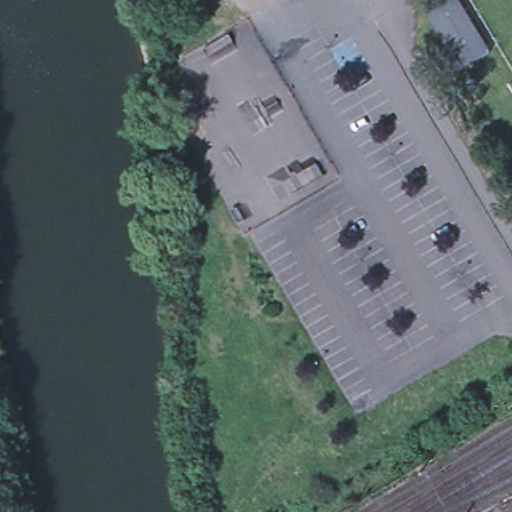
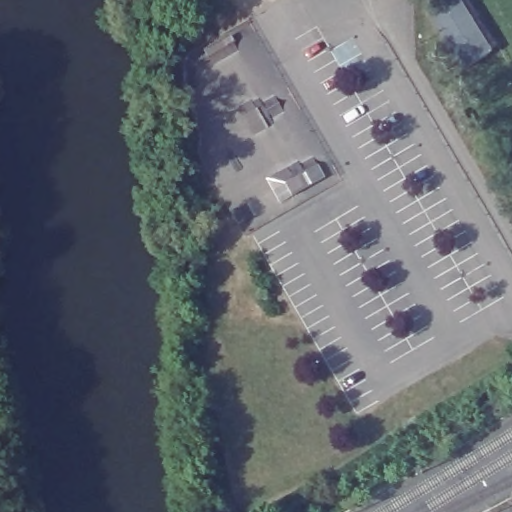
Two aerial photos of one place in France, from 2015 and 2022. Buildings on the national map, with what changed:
unchanged [(461,0),(493,53),(467,69),(429,4),(435,0),(461,0)]

